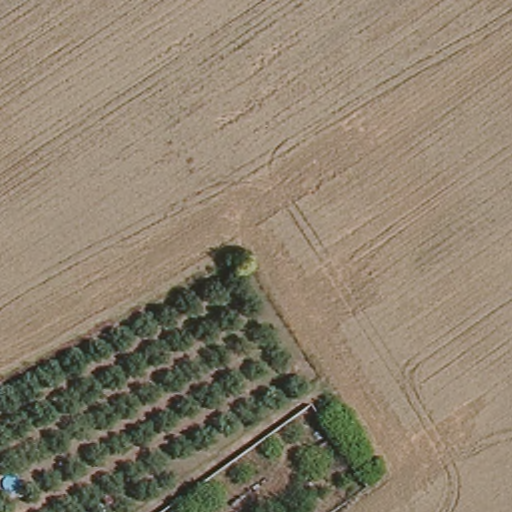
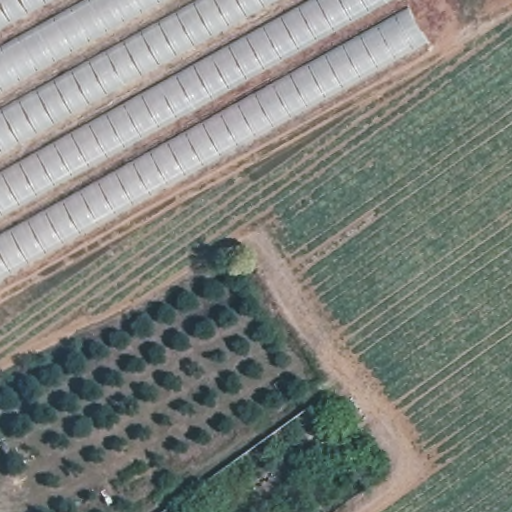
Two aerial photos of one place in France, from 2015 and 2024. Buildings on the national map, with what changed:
new [(0,282),(0,0),(404,0),(429,43),(0,282)]

